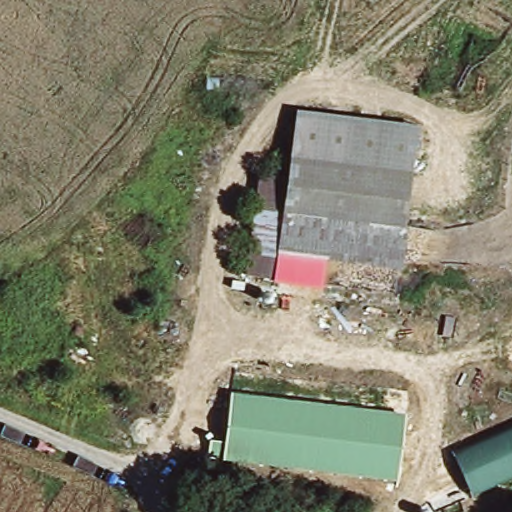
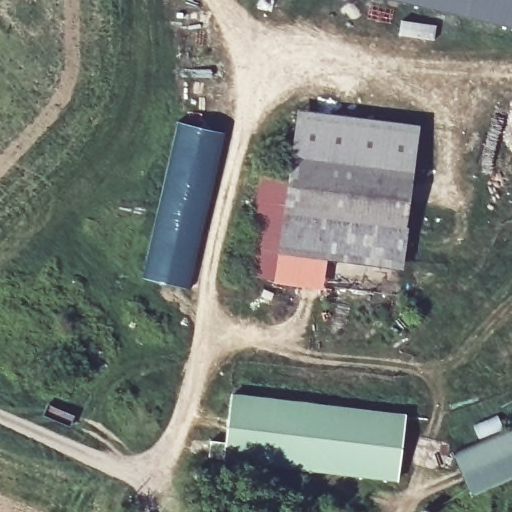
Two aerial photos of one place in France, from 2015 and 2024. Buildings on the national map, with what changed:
new [(512,28),(393,0),(512,0),(512,28)]
unchanged [(299,111),(367,121),(358,161),(297,125),(299,111)]
unchanged [(336,260),(358,161),(367,121),(418,130),(397,270),(336,260)]
new [(180,123),(222,133),(186,287),(142,275),(180,123)]
unchanged [(358,161),(336,260),(276,251),(287,181),(297,125),(358,161)]
unchanged [(271,282),(242,277),(257,177),(287,181),(276,251),(271,282)]
unchanged [(405,414),(397,482),(225,459),(207,457),(209,438),(227,440),(231,392),(405,414)]
unchanged [(512,479),(470,497),(450,450),(512,425),(512,479)]

